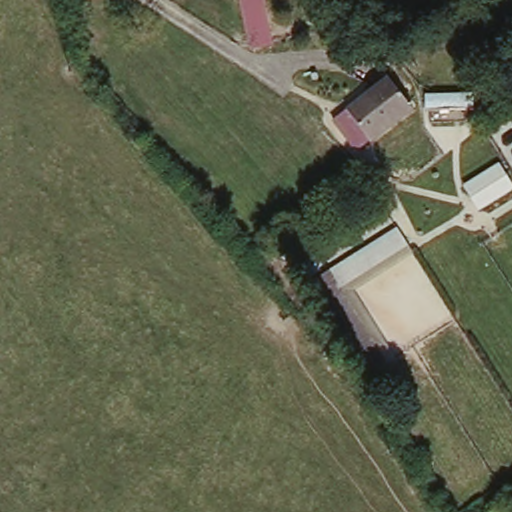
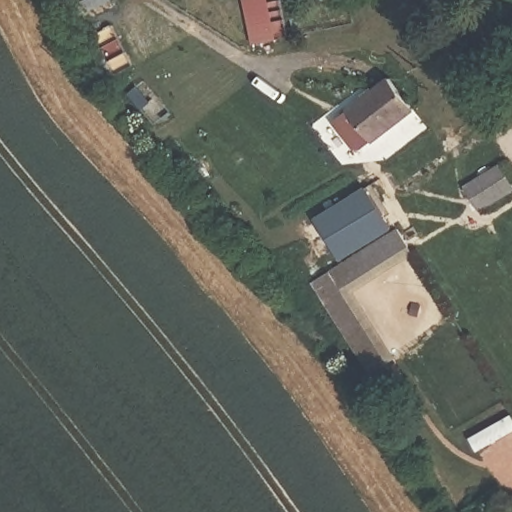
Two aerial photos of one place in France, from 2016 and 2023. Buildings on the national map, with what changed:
unchanged [(241,0),(269,0),(277,43),(250,47),(241,0)]
unchanged [(388,77),(413,109),(356,150),(332,118),(388,77)]
demolished [(293,156),(304,173),(290,184),(279,168),(293,156)]
unchanged [(512,183),(512,189),(480,209),(465,188),(500,164),(512,183)]
demolished [(307,181),(321,199),(305,211),(295,190),(307,181)]
new [(363,186),(390,229),(340,262),(313,220),(363,186)]
unchanged [(411,249),(347,292),(392,360),(370,375),(311,284),(396,227),(411,249)]

